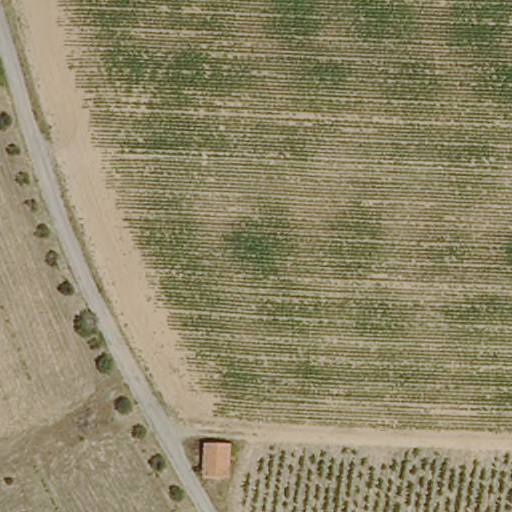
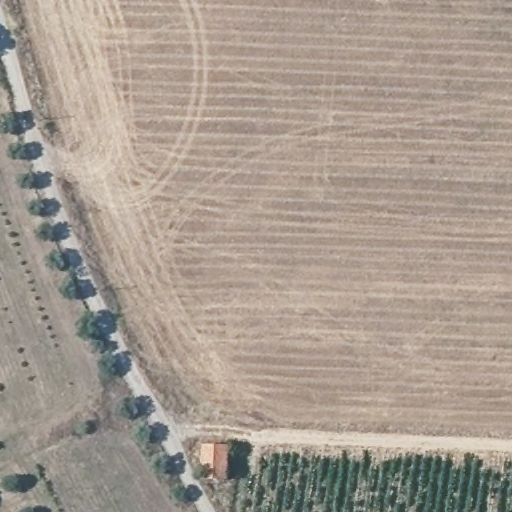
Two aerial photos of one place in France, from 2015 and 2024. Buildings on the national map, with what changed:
unchanged [(227,478),(202,477),(203,447),(227,447),(227,478)]

